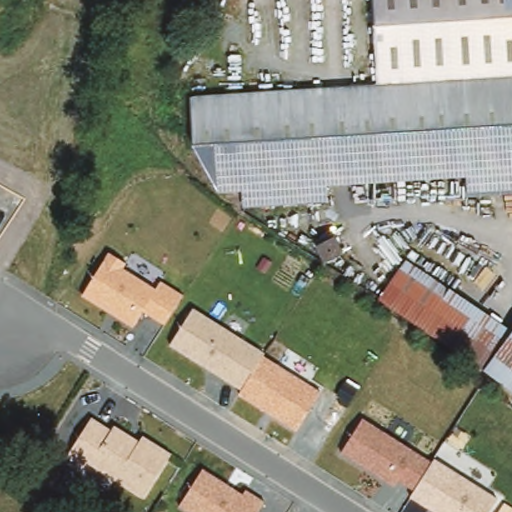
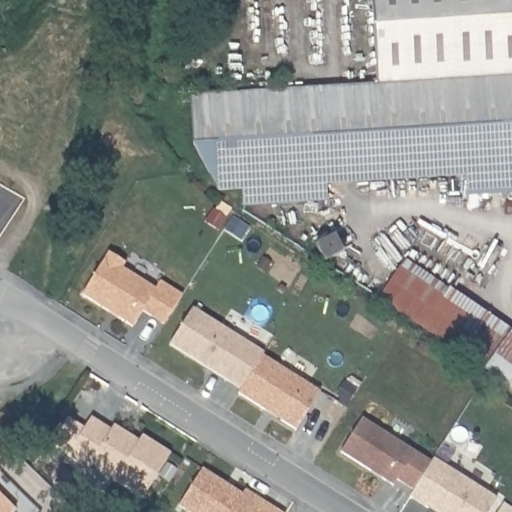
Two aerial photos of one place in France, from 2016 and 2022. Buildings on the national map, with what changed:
unchanged [(278,86),(293,85),(294,92),(334,89),(334,70),(352,69),(353,90),(372,88),(369,0),(512,0),(512,195),(472,195),(472,180),(295,187),(295,212),(240,213),(240,190),(214,190),(185,144),(184,97),(278,93),(278,86)]
unchanged [(127,262),(122,269),(156,288),(160,281),(184,295),(164,326),(141,312),(132,326),(81,295),(107,251),(127,262)]
unchanged [(427,276),(402,312),(378,294),(403,260),(427,276)]
unchanged [(409,317),(402,312),(427,276),(431,279),(511,337),(487,372),(409,317)]
unchanged [(264,351),(241,391),(168,345),(191,308),(264,351)]
unchanged [(511,337),(512,335),(512,391),(487,372),(511,337)]
unchanged [(321,393),(297,431),(240,394),(241,391),(261,356),(321,393)]
unchanged [(433,460),(412,492),(396,482),(393,487),(340,453),(362,417),(433,460)]
unchanged [(171,454),(144,497),(70,456),(90,420),(112,431),(114,425),(118,428),(141,443),(144,439),(171,454)]
unchanged [(496,499),(488,512),(433,512),(410,498),(412,492),(433,460),(496,499)]
new [(0,473),(0,470),(2,471),(0,473)]
unchanged [(242,495),(245,490),(265,505),(260,510),(259,512),(189,512),(179,505),(180,505),(202,471),(242,495)]
new [(12,512),(0,512),(0,492),(16,507),(12,512)]

